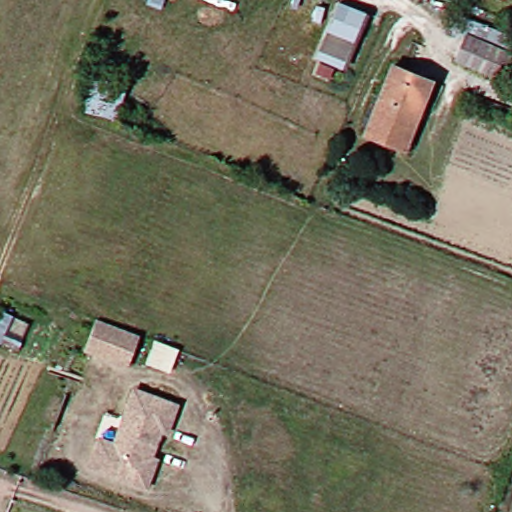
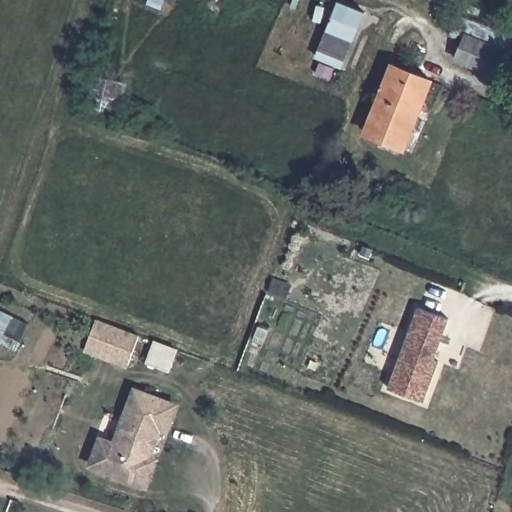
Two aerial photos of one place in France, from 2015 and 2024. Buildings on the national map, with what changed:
unchanged [(354,8),(334,64),(308,55),(328,0),(334,0),(354,8)]
unchanged [(440,27),(448,13),(512,39),(512,47),(500,81),(446,59),(458,33),(440,27)]
unchanged [(360,133),(384,65),(422,77),(406,125),(399,148),(390,145),(360,133)]
unchanged [(128,84),(117,120),(82,108),(94,73),(128,84)]
new [(433,369),(421,401),(385,388),(416,307),(446,318),(431,358),(436,360),(433,369)]
unchanged [(124,359),(80,344),(93,314),(135,328),(124,359)]
unchanged [(169,369),(150,362),(160,340),(178,347),(169,369)]
unchanged [(171,406),(162,431),(157,428),(146,458),(152,461),(142,487),(87,465),(95,439),(110,445),(131,389),(171,406)]

